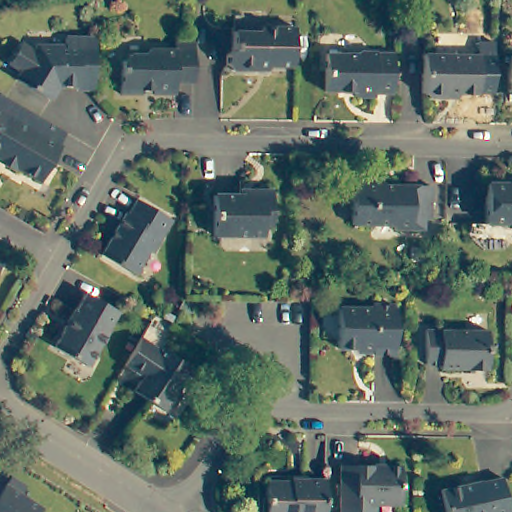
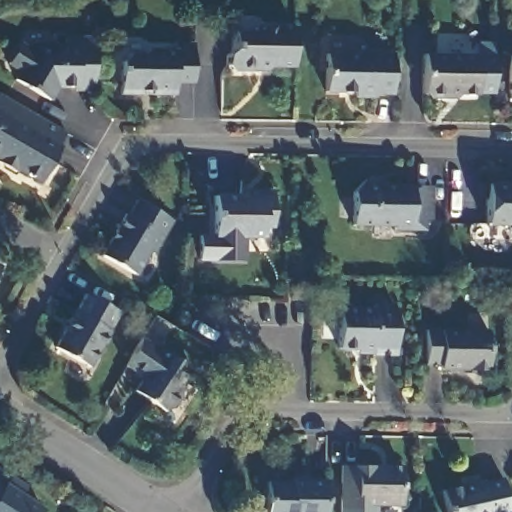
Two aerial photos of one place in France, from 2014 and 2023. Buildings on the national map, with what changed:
unchanged [(298,65),(262,64),(262,68),(237,67),(232,62),(232,52),(237,47),(237,27),(261,28),(265,24),(299,24),(298,65)]
unchanged [(51,95),(21,78),(25,70),(12,62),(23,42),(36,50),(40,44),(68,44),(68,35),(102,35),(102,86),(82,86),(82,83),(63,84),(56,97),(51,95)]
unchanged [(128,93),(127,59),(134,52),(147,52),(152,47),(177,47),(177,40),(197,40),(197,67),(197,80),(184,80),(184,92),(161,92),(151,92),(128,93)]
unchanged [(372,54),(372,57),(377,57),(379,56),(392,56),(392,96),(369,95),(369,99),(357,98),(357,96),(324,94),(324,56),(348,56),(348,52),(372,54)]
unchanged [(477,54),(477,92),(444,92),(441,96),(432,96),(422,89),(422,53),(477,54)]
unchanged [(512,94),(505,94),(505,60),(512,60),(512,94)]
unchanged [(4,82),(72,120),(65,134),(67,135),(48,170),(25,157),(23,161),(3,149),(5,146),(0,143),(0,89),(4,82)]
unchanged [(382,222),(347,222),(348,188),(355,176),(358,176),(361,177),(370,185),(382,185),(382,222)]
unchanged [(512,225),(500,225),(500,221),(478,220),(478,181),(500,181),(501,177),(512,178),(512,225)]
unchanged [(428,186),(427,219),(422,219),(422,228),(391,227),(391,223),(382,222),(382,185),(428,186)]
unchanged [(268,187),(267,224),(261,224),(260,235),(209,233),(211,194),(244,195),(245,187),(268,187)]
unchanged [(107,254),(111,246),(130,212),(132,213),(142,197),(177,217),(157,251),(154,249),(145,266),(141,273),(107,254)]
unchanged [(54,346),(64,328),(71,316),(75,309),(76,310),(87,293),(120,312),(109,330),(110,330),(106,336),(89,366),(54,346)]
unchanged [(397,307),(395,351),(372,351),(372,357),(336,356),(338,310),(369,310),(370,306),(397,307)]
unchanged [(491,330),(489,370),(443,369),(441,366),(426,365),(427,327),(491,330)]
unchanged [(172,361),(204,380),(192,401),(194,407),(187,419),(180,421),(179,424),(146,405),(152,393),(133,382),(135,377),(151,351),(170,362),(172,361)]
unchanged [(401,505),(376,504),(375,512),(343,512),(346,463),(402,465),(401,505)]
unchanged [(15,476),(30,486),(25,493),(46,507),(42,512),(0,512),(0,482),(7,486),(9,483),(10,483),(15,476)]
unchanged [(488,482),(489,482),(504,480),(510,478),(512,491),(512,512),(453,512),(448,490),(488,482)]
unchanged [(326,512),(263,512),(263,485),(285,485),(287,482),(327,482),(326,512)]

